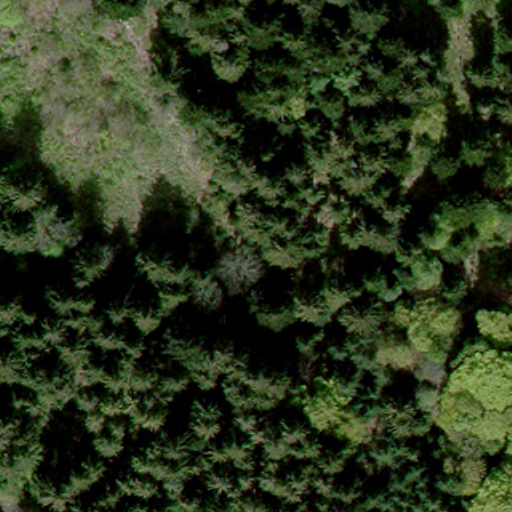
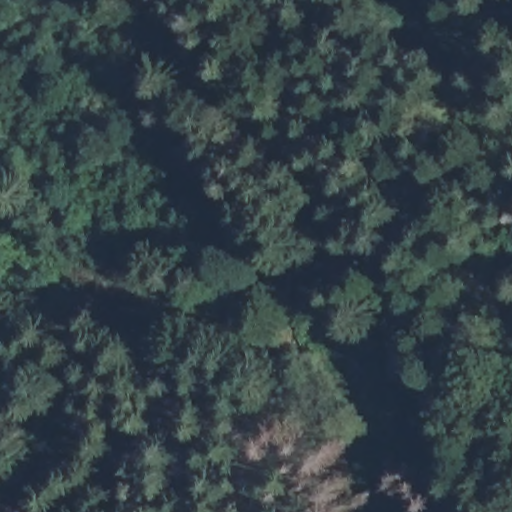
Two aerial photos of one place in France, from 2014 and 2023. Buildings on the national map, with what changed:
[]

